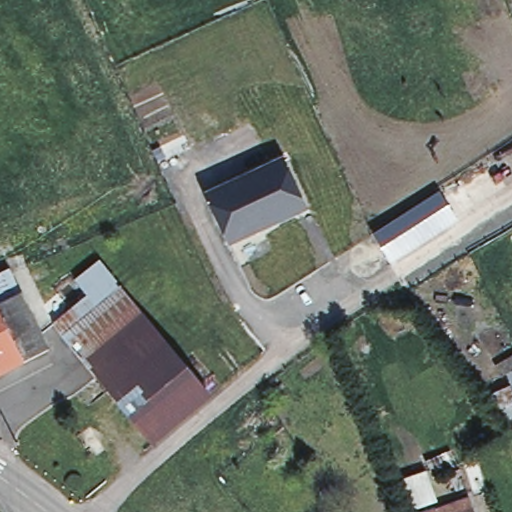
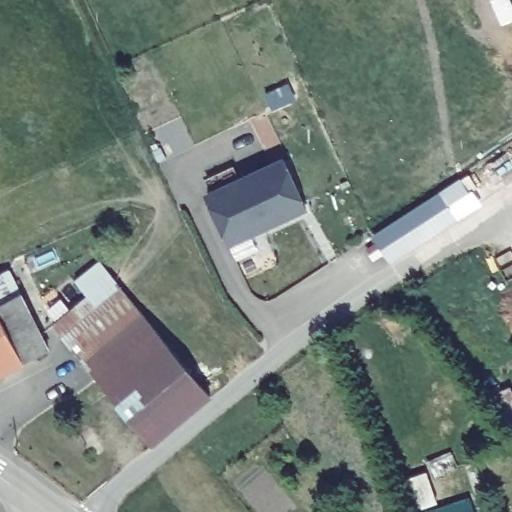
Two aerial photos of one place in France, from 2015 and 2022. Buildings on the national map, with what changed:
unchanged [(229,247),(205,196),(283,157),(307,210),(229,247)]
unchanged [(392,263),(375,234),(440,193),(457,221),(392,263)]
unchanged [(98,376),(57,322),(91,295),(80,281),(105,262),(158,329),(98,376)]
unchanged [(25,297),(52,352),(28,363),(0,377),(0,280),(14,273),(25,297)]
unchanged [(158,329),(212,397),(152,444),(98,376),(158,329)]
unchanged [(508,388),(496,363),(512,355),(512,425),(495,397),(508,388)]
unchanged [(465,502),(469,512),(435,512),(465,502)]

